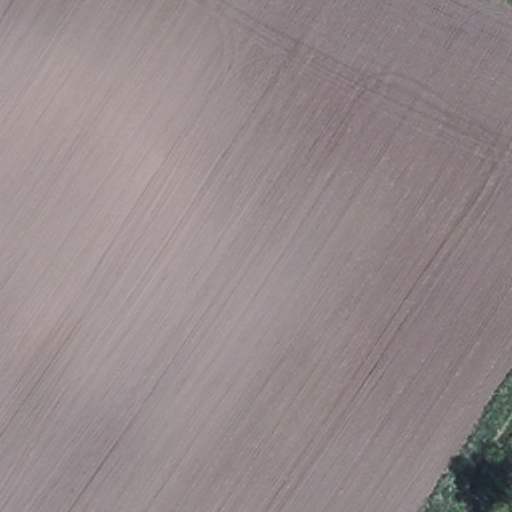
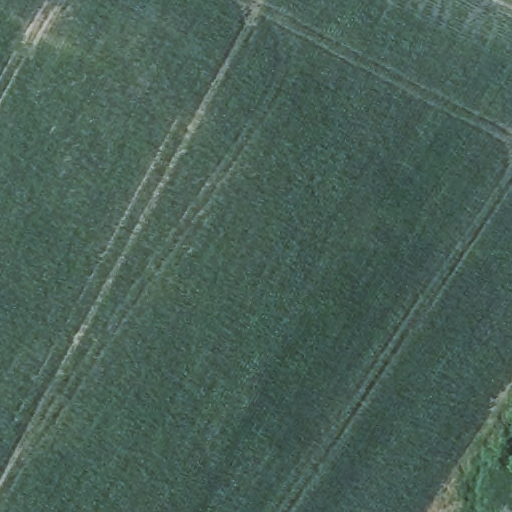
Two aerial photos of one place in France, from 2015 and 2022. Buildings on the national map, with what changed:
[]

